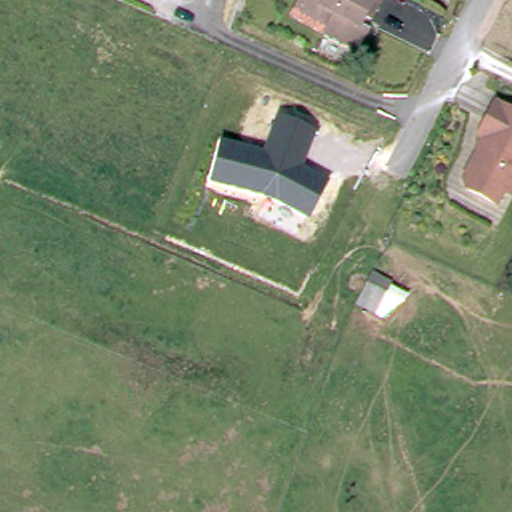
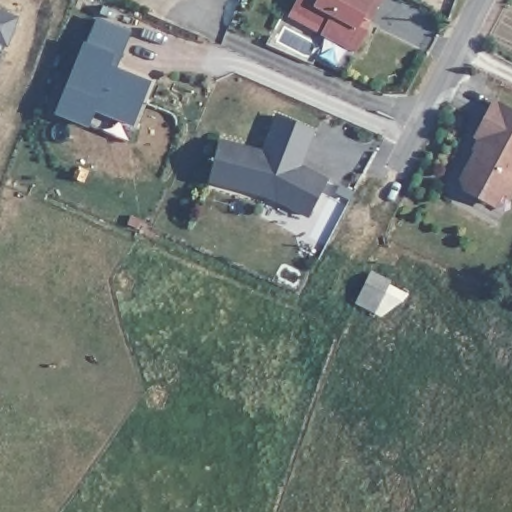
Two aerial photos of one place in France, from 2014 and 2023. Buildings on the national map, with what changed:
unchanged [(372,30),(362,50),(330,34),(333,27),(300,10),(305,0),(385,0),(382,6),(376,2),(375,6),(367,19),(374,22),(370,29),(372,30)]
new [(7,44),(0,42),(0,14),(16,20),(7,44)]
new [(80,45),(90,20),(123,32),(112,60),(109,69),(143,82),(126,125),(88,110),(82,127),(50,114),(78,44),(80,45)]
unchanged [(512,112),(512,189),(509,195),(502,192),(495,205),(466,190),(464,180),(472,162),(477,164),(482,153),(476,150),(482,139),(478,137),(485,121),(495,103),(512,112)]
unchanged [(264,196),(209,183),(222,139),(263,147),(277,116),(319,133),(307,167),(327,175),(306,217),(264,196)]
new [(372,271),(390,281),(389,285),(409,295),(382,318),(356,305),(372,271)]

